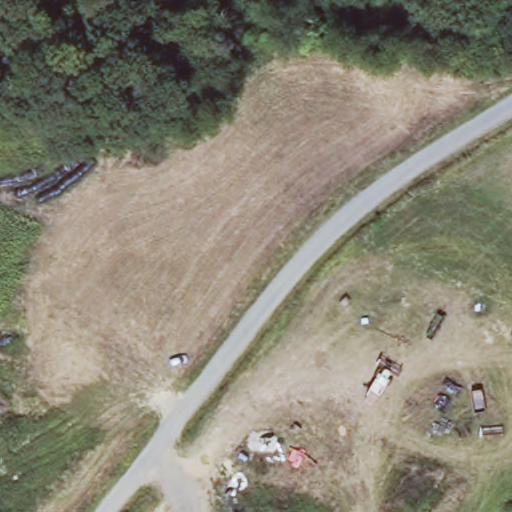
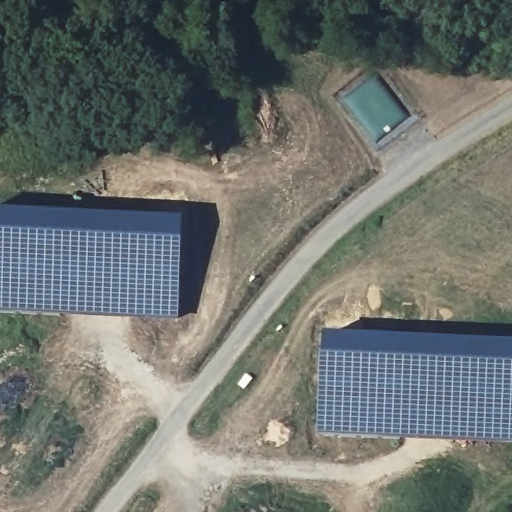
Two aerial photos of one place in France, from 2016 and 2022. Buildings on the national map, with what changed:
new [(178,317),(0,310),(0,210),(183,216),(178,317)]
new [(319,434),(324,330),(512,340),(512,444),(319,434)]
new [(247,375),(252,378),(245,388),(240,385),(247,375)]

